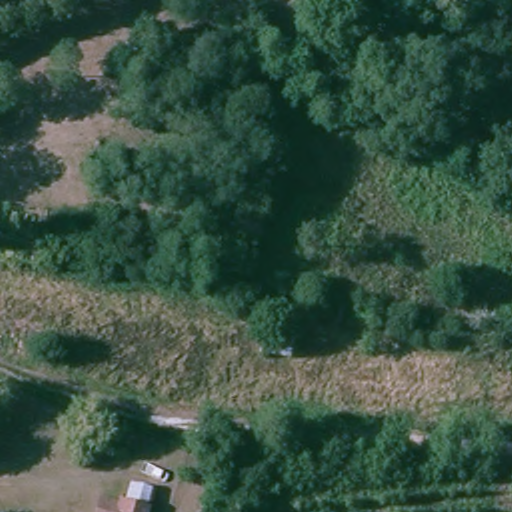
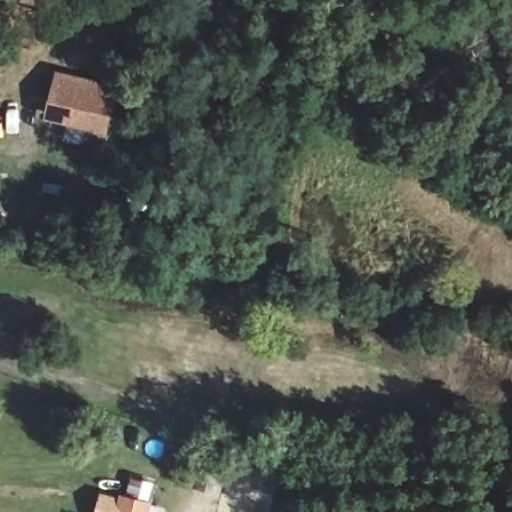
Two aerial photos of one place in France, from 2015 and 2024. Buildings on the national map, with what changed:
new [(43,119),(54,69),(120,84),(108,135),(43,119)]
unchanged [(124,493),(129,473),(149,478),(144,498),(143,512),(93,512),(97,494),(123,499),(124,493)]

